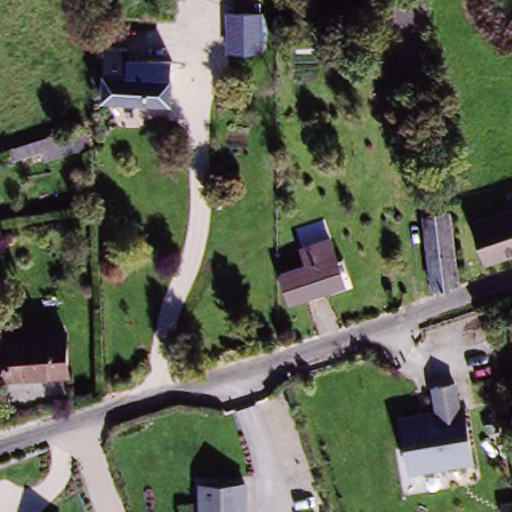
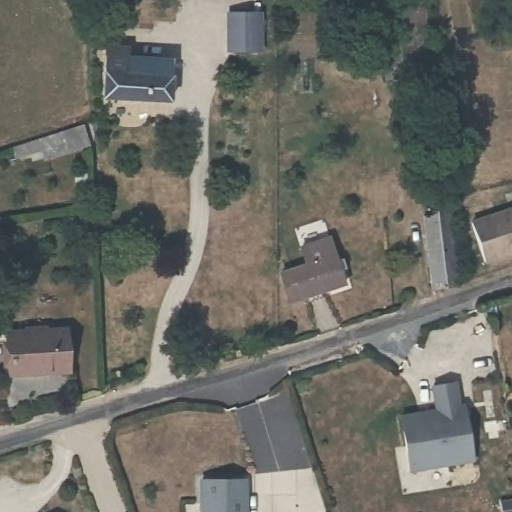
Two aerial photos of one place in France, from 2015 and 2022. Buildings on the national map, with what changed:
unchanged [(432,52),(388,51),(387,20),(361,19),(361,0),(425,0),(432,52)]
unchanged [(231,18),(263,17),(265,54),(232,55),(231,18)]
unchanged [(389,83),(388,51),(432,52),(437,84),(389,83)]
unchanged [(105,70),(175,73),(174,102),(103,100),(105,70)]
unchanged [(9,153),(84,127),(93,150),(22,169),(9,153)]
unchanged [(512,257),(480,269),(464,226),(512,209),(512,257)]
unchanged [(450,298),(430,304),(425,218),(442,217),(454,217),(458,250),(465,290),(466,293),(450,298)]
unchanged [(311,259),(342,250),(347,267),(354,288),(295,306),(290,284),(316,276),(311,259)]
unchanged [(70,338),(74,380),(16,385),(13,343),(70,338)]
unchanged [(442,415),(438,391),(460,388),(465,415),(470,414),(477,465),(415,475),(406,421),(442,415)]
unchanged [(204,512),(202,488),(247,485),(249,512),(204,512)]

